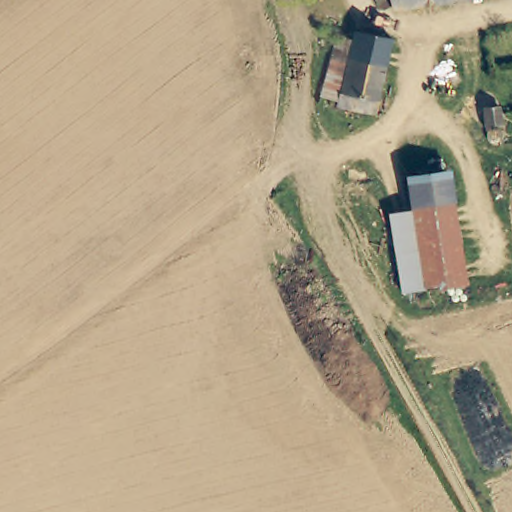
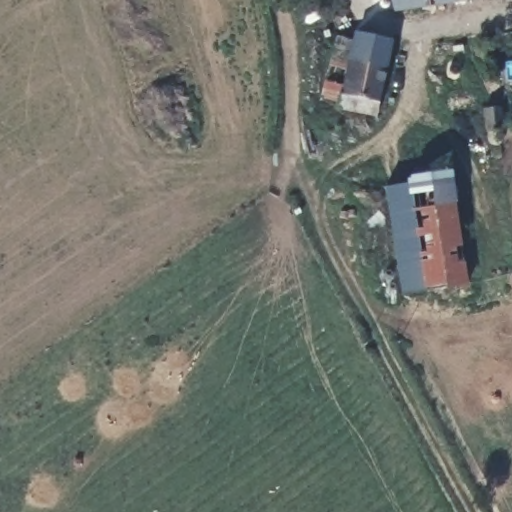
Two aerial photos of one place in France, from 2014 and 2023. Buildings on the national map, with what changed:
unchanged [(367,0),(475,0),(389,11),(387,7),(372,13),(367,0)]
unchanged [(357,40),(359,30),(396,39),(378,115),(344,107),(346,102),(354,60),(353,58),(357,40)]
unchanged [(354,60),(346,102),(326,98),(338,41),(339,35),(357,40),(353,58),(354,60)]
unchanged [(485,110),(499,106),(501,110),(503,139),(493,142),(492,137),(485,110)]
unchanged [(407,183),(448,175),(466,284),(425,291),(412,212),(407,183)]
unchanged [(402,295),(389,216),(412,212),(425,291),(402,295)]

